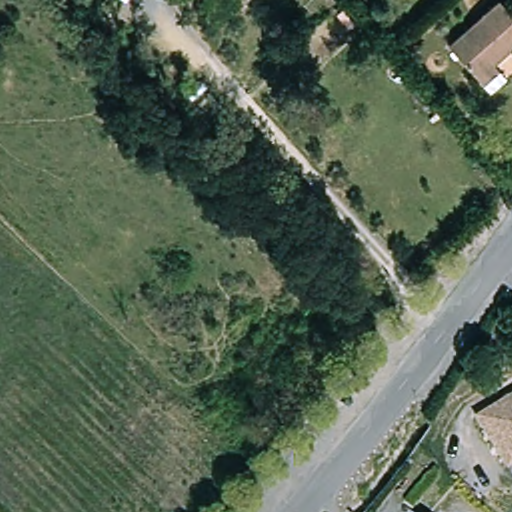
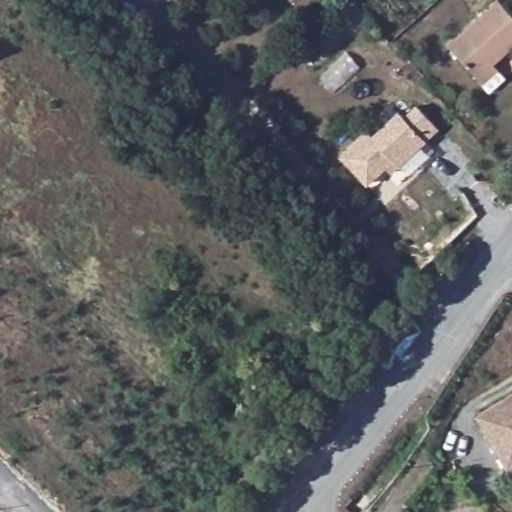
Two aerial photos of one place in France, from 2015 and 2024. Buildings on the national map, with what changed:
unchanged [(449,49),(498,5),(512,21),(512,49),(477,79),(449,49)]
new [(384,168),(366,184),(340,158),(366,133),(371,138),(396,112),(402,119),(415,106),(436,128),(397,166),(390,174),(384,168)]
unchanged [(480,415),(512,400),(512,467),(507,469),(480,415)]

